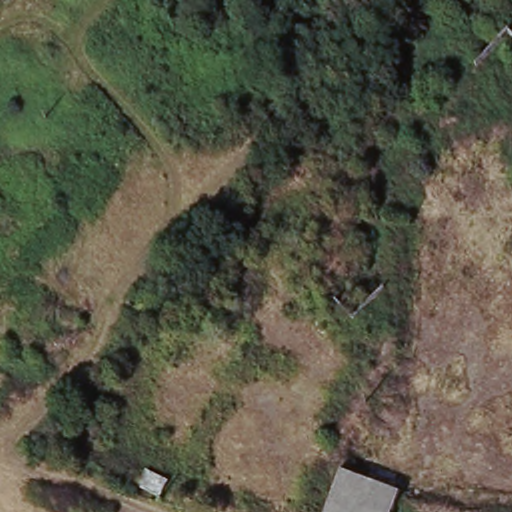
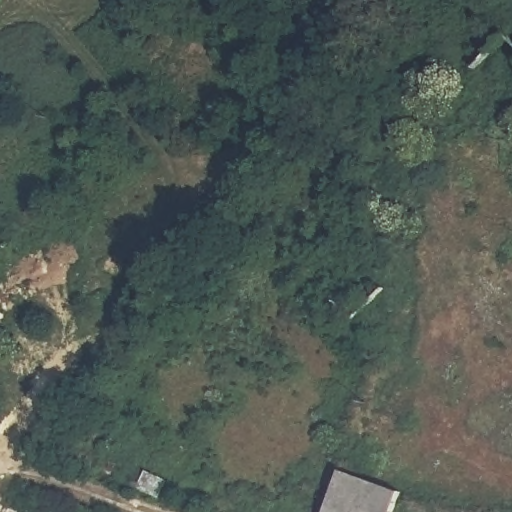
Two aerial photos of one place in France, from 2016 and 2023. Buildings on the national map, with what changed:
unchanged [(396,512),(327,512),(344,472),(346,473),(383,490),(402,498),(396,512)]

